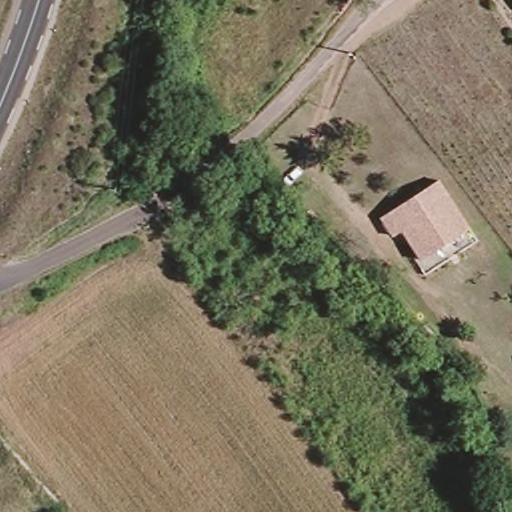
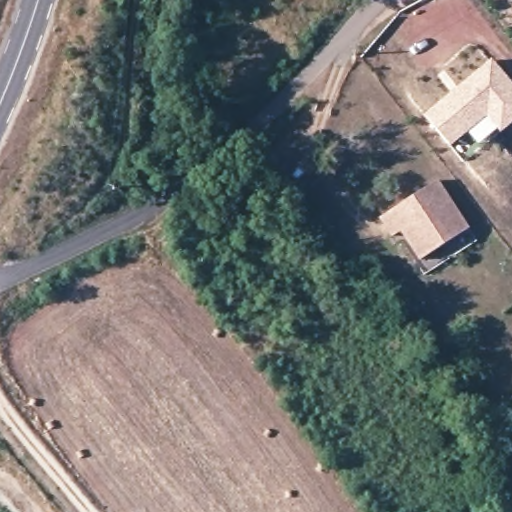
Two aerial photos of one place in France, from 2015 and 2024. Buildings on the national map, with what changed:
new [(487,116),(453,145),(426,115),(492,59),(512,82),(512,123),(500,132),(487,116)]
unchanged [(442,176),(472,225),(425,257),(407,227),(398,232),(387,214),(442,176)]

